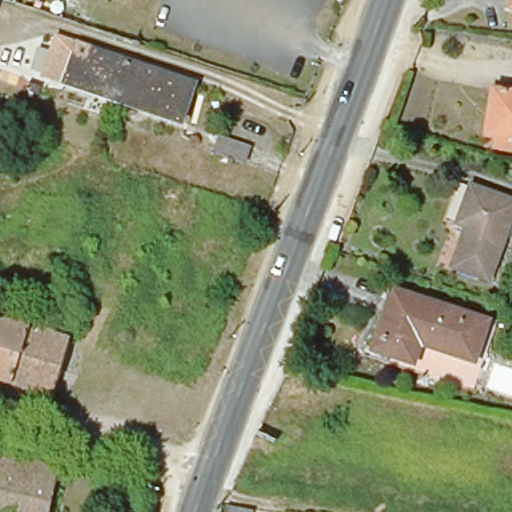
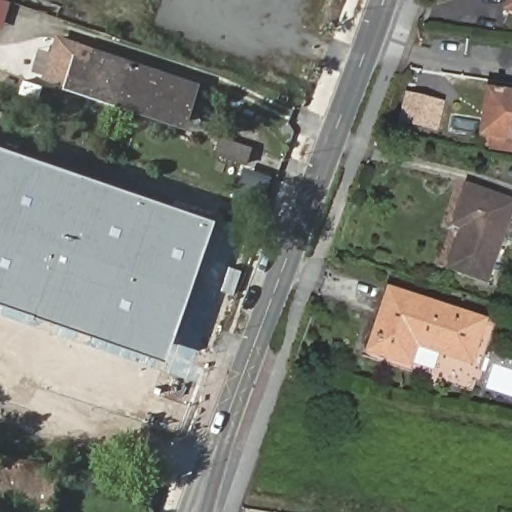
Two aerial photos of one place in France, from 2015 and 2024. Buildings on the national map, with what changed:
unchanged [(506,6),(509,0),(512,0),(512,8),(506,6)]
unchanged [(47,45),(71,52),(74,42),(201,87),(187,126),(36,75),(47,45)]
unchanged [(512,100),(512,140),(490,137),(497,97),(512,100)]
unchanged [(432,102),(447,104),(443,125),(430,123),(432,102)]
unchanged [(216,154),(221,139),(249,148),(244,164),(216,154)]
new [(162,358),(0,303),(0,144),(212,217),(162,358)]
unchanged [(512,197),(512,212),(491,275),(453,262),(465,223),(457,220),(471,183),(512,197)]
unchanged [(490,321),(477,363),(423,347),(417,366),(377,354),(398,293),(490,321)]
unchanged [(48,395),(0,380),(0,317),(67,337),(48,395)]
unchanged [(49,512),(0,512),(0,456),(57,467),(49,512)]
demolished [(228,512),(225,512),(225,511),(228,512)]

